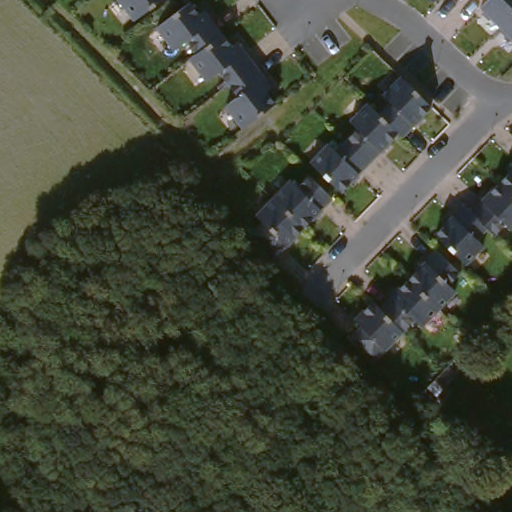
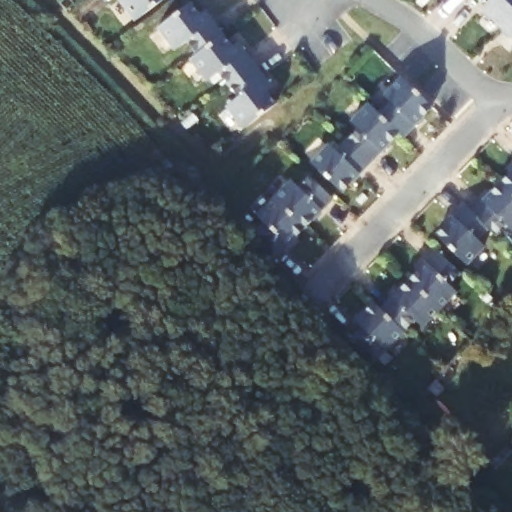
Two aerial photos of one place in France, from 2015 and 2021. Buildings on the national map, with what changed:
unchanged [(139,19),(124,0),(162,0),(139,19)]
unchanged [(480,5),(485,0),(512,0),(512,34),(480,5)]
unchanged [(229,44),(235,41),(272,86),(263,96),(270,107),(246,128),(228,105),(239,96),(221,74),(212,80),(186,45),(181,48),(164,24),(191,4),(229,44)]
unchanged [(338,190),(309,157),(325,143),(333,150),(354,130),(346,119),(364,104),(374,114),(388,101),(381,92),(398,79),(429,107),(338,190)]
unchanged [(500,241),(484,230),(473,241),(478,247),(463,263),(434,236),(463,203),(472,210),(512,169),(512,229),(500,241)]
unchanged [(273,256),(250,230),(261,221),(250,210),(288,178),(297,186),(308,176),(329,199),(273,256)]
unchanged [(448,287),(454,294),(416,331),(408,324),(373,361),(346,337),(356,329),(351,322),(373,302),(378,305),(434,251),(460,277),(448,287)]

